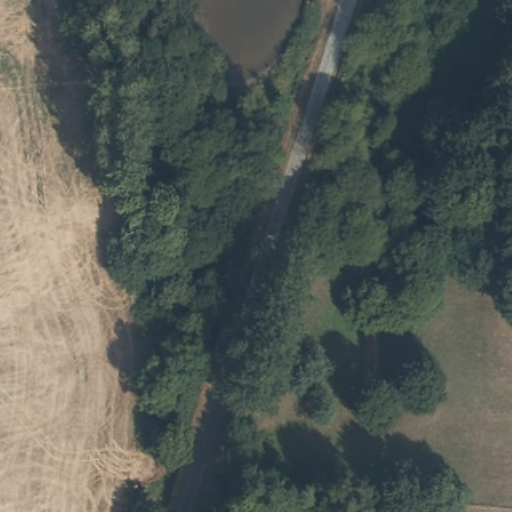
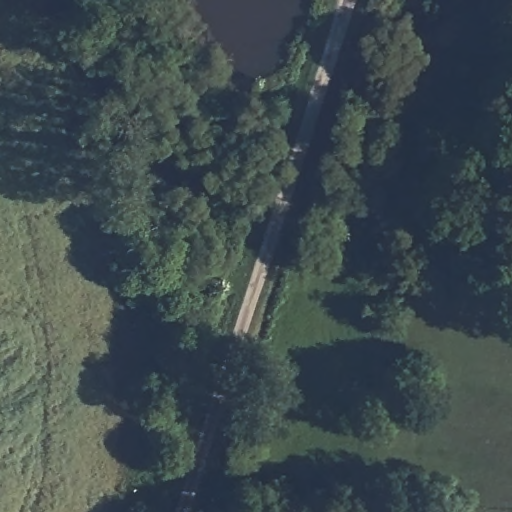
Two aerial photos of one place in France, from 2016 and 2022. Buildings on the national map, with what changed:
[]

